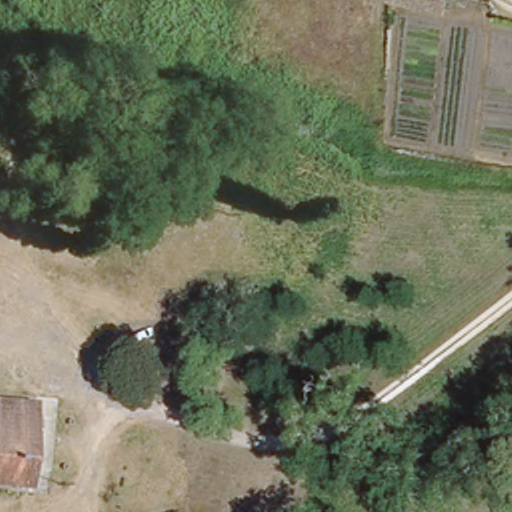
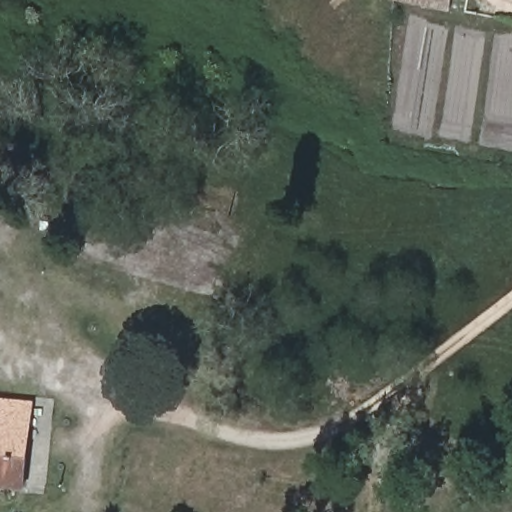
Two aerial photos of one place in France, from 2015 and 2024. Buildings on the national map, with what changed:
unchanged [(447,10),(395,1),(396,0),(448,0),(447,10)]
unchanged [(0,398),(34,401),(27,484),(0,482),(0,398)]

